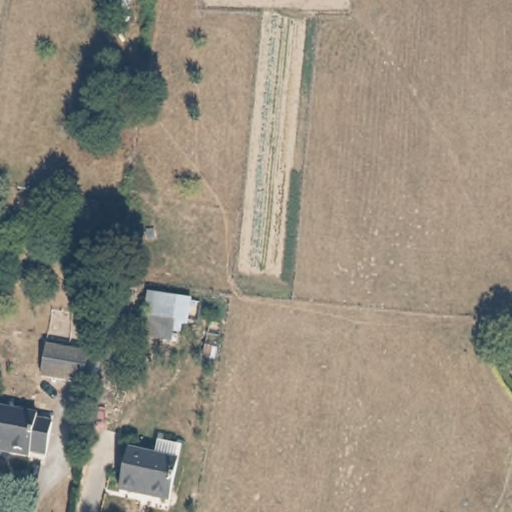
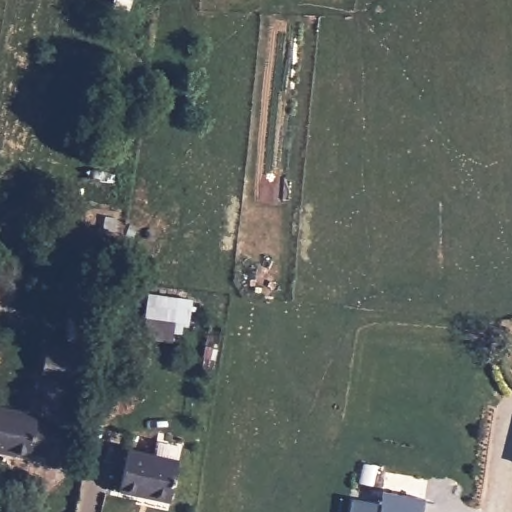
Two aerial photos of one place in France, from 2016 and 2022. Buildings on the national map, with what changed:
unchanged [(195,297),(190,327),(141,320),(146,291),(195,297)]
unchanged [(43,379),(47,349),(90,357),(85,387),(43,379)]
unchanged [(39,423),(52,424),(47,457),(31,454),(30,458),(0,453),(0,409),(40,418),(39,423)]
unchanged [(125,494),(131,453),(182,464),(174,504),(125,494)]
new [(421,512),(350,512),(351,502),(380,507),(383,494),(423,502),(421,512)]

